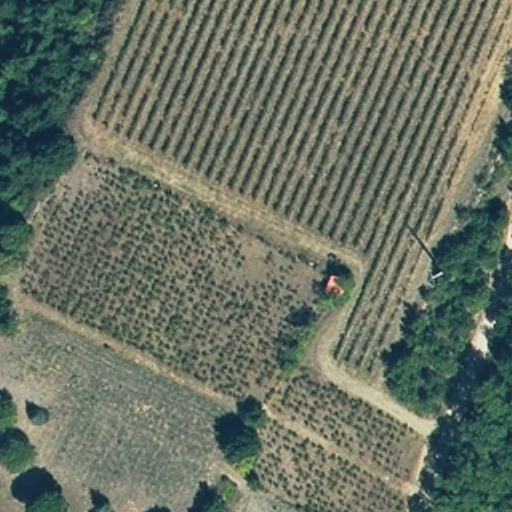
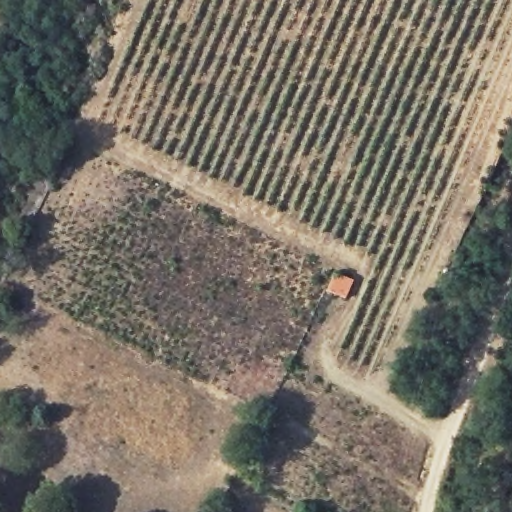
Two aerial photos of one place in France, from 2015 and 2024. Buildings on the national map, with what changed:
unchanged [(342,298),(323,292),(331,275),(354,280),(342,298)]

